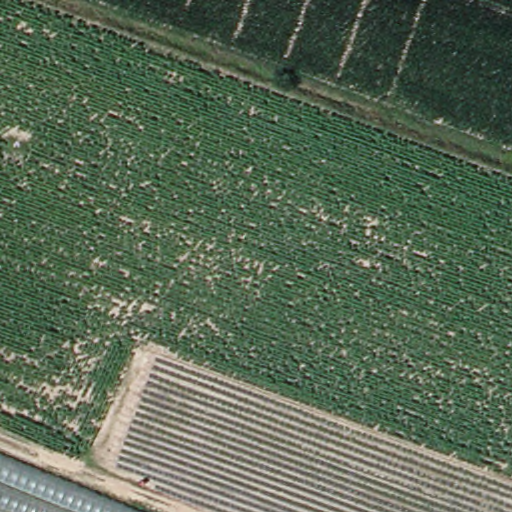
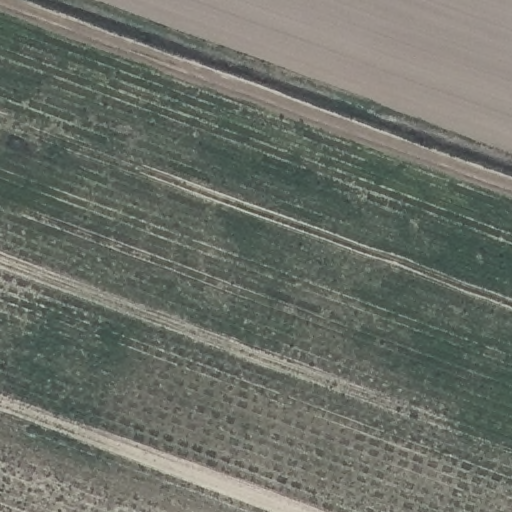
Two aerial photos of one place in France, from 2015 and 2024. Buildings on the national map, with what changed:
demolished [(158,512),(0,512),(0,450),(158,512)]

